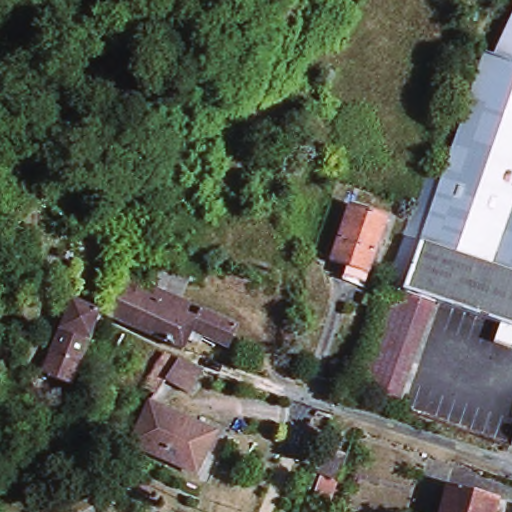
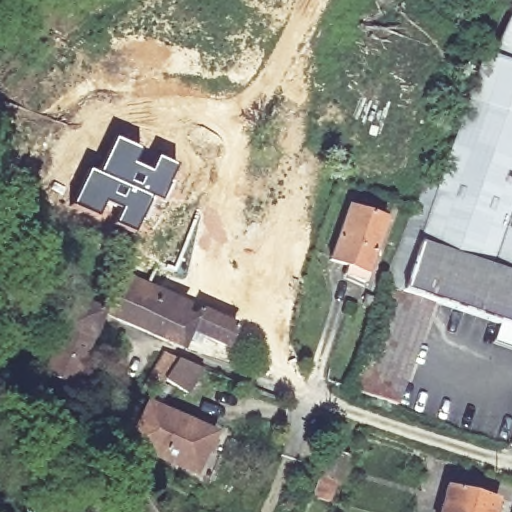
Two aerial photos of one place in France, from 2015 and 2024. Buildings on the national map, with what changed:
unchanged [(512,11),(512,61),(492,54),(512,11)]
unchanged [(512,116),(467,100),(484,51),(492,54),(512,61),(512,116)]
unchanged [(499,324),(434,301),(398,408),(350,391),(386,285),(402,291),(467,100),(512,116),(512,347),(511,349),(493,342),(499,324)]
new [(88,168),(96,172),(115,136),(140,149),(135,161),(148,168),(155,155),(176,165),(159,203),(150,199),(132,235),(111,225),(118,211),(104,204),(97,217),(71,205),(88,168)]
unchanged [(341,275),(345,265),(328,259),(347,206),(385,219),(365,273),(362,282),(341,275)]
unchanged [(173,275),(165,293),(197,308),(193,318),(119,282),(124,273),(145,283),(154,265),(173,275)]
unchanged [(119,282),(193,318),(197,308),(234,326),(225,346),(189,330),(182,348),(107,310),(119,282)]
unchanged [(71,386),(41,374),(70,299),(101,311),(95,327),(71,386)]
unchanged [(172,390),(161,405),(150,398),(171,363),(185,369),(208,378),(193,403),(172,390)]
unchanged [(155,413),(225,443),(207,485),(137,455),(155,413)]
unchanged [(314,496),(321,474),(315,472),(315,470),(323,446),(346,454),(338,479),(332,501),(314,496)]
unchanged [(446,486),(495,499),(492,512),(439,512),(446,486)]

